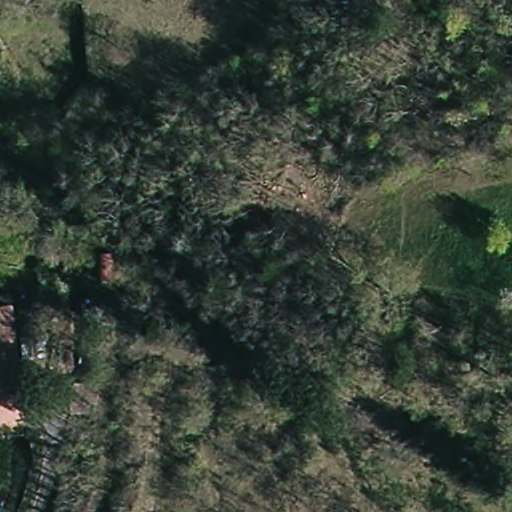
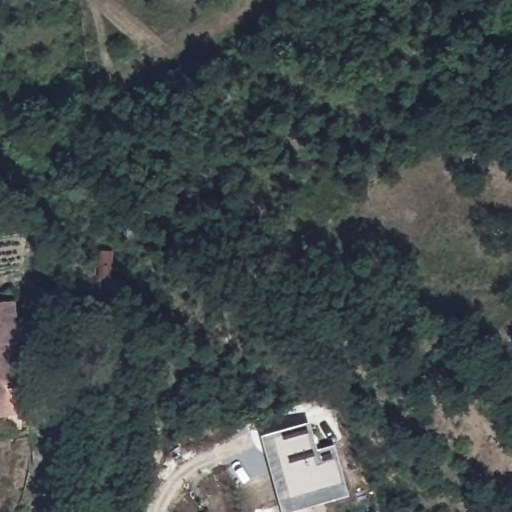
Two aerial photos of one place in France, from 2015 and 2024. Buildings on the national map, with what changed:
unchanged [(0,414),(0,303),(19,302),(25,412),(0,414)]
new [(335,444),(349,495),(285,512),(281,512),(260,435),(310,422),(318,448),(335,444)]

